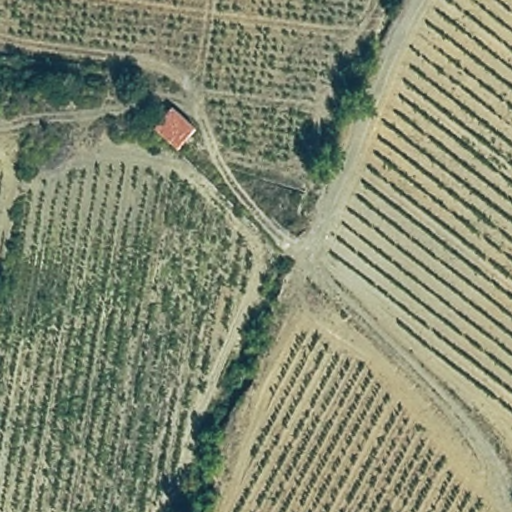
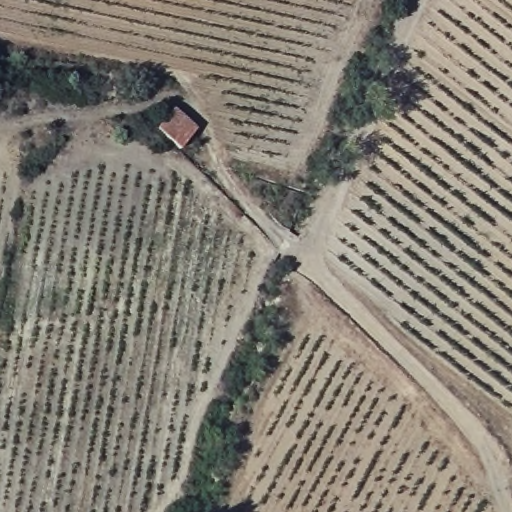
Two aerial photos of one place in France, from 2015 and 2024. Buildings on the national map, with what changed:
unchanged [(201,118),(180,145),(158,127),(176,102),(201,118)]

